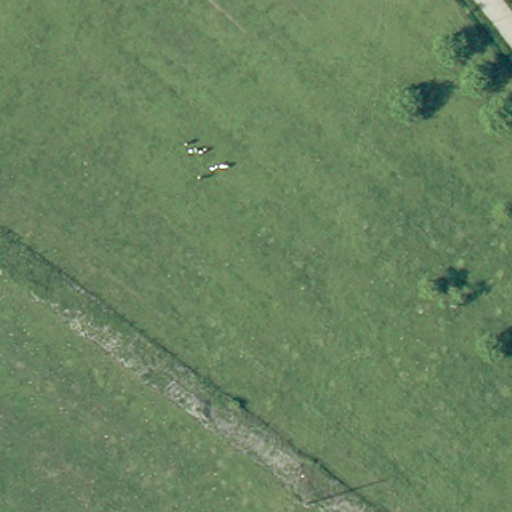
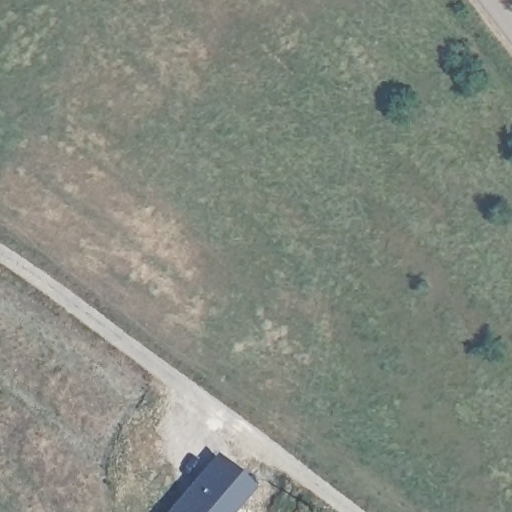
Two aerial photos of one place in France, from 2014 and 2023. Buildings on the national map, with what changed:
new [(255,485),(232,512),(164,512),(215,452),(255,485)]

